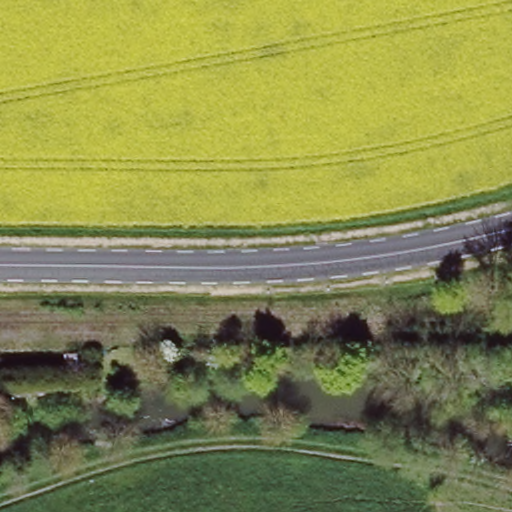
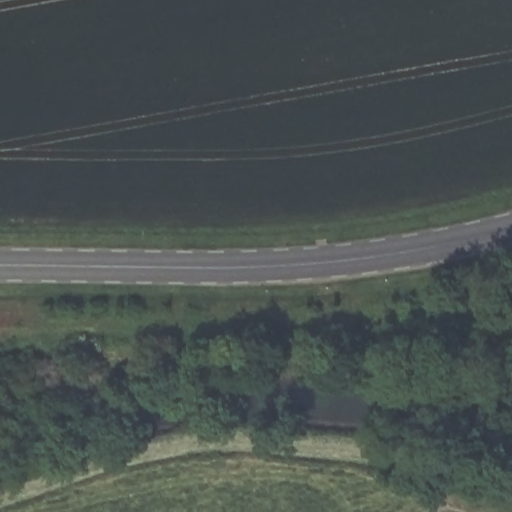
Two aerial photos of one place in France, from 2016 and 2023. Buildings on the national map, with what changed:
unchanged [(7,372),(96,370),(96,388),(7,392),(7,372)]

